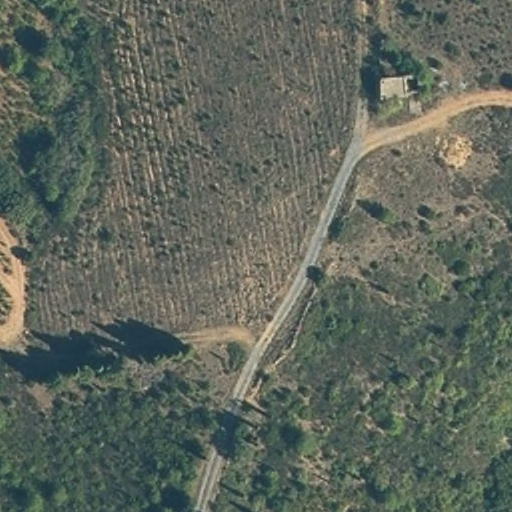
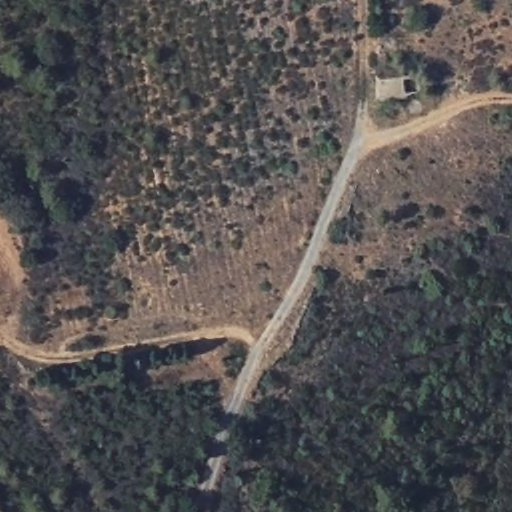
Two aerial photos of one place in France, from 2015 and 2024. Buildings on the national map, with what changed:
unchanged [(417,70),(420,85),(405,87),(405,94),(377,98),(374,76),(417,70)]

